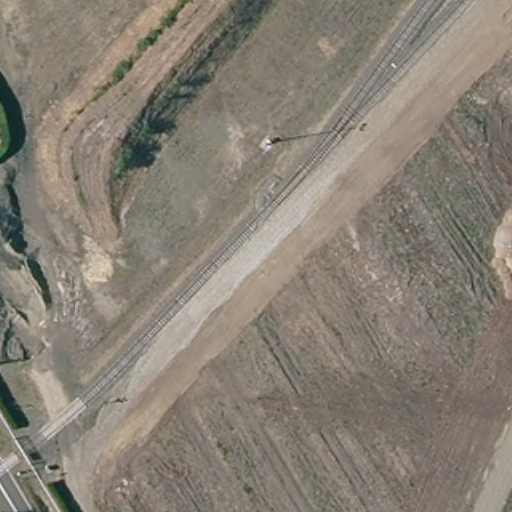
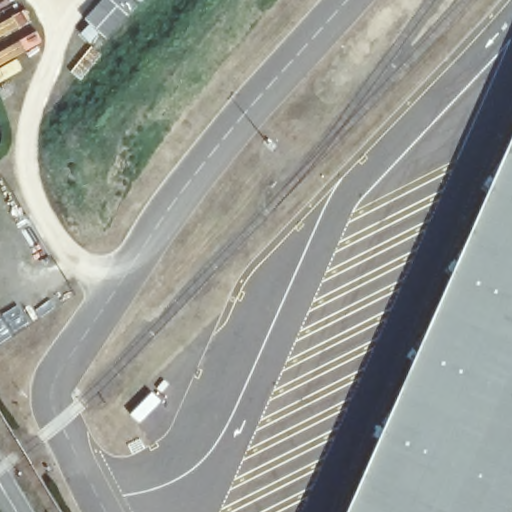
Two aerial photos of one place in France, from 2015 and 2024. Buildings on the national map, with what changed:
new [(107,39),(85,19),(102,0),(133,0),(138,5),(107,39)]
new [(344,512),(512,131),(512,512),(344,512)]

